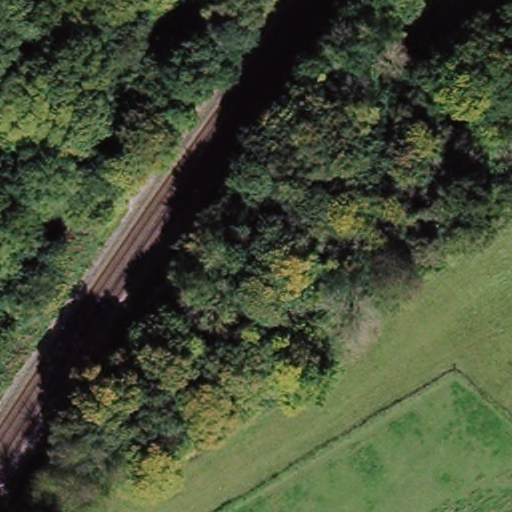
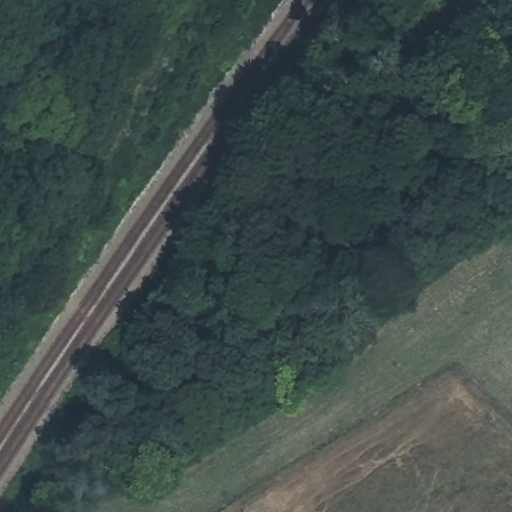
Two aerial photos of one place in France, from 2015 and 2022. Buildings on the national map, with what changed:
[]

